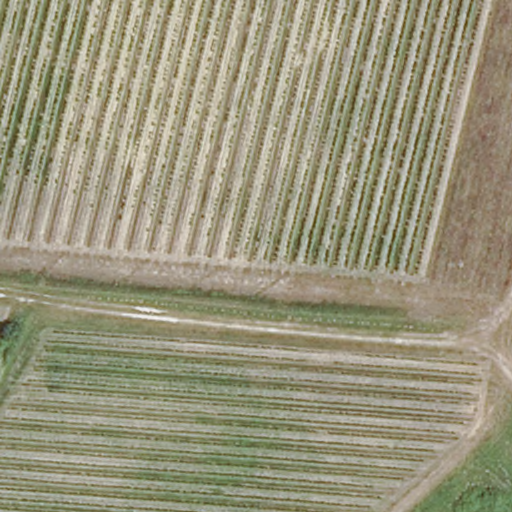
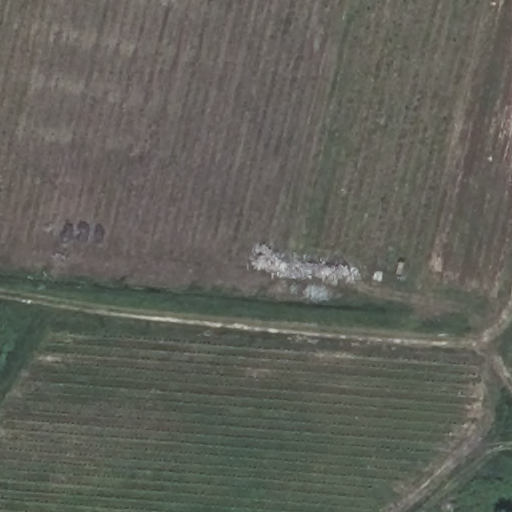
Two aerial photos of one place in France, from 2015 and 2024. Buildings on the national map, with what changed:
[]

